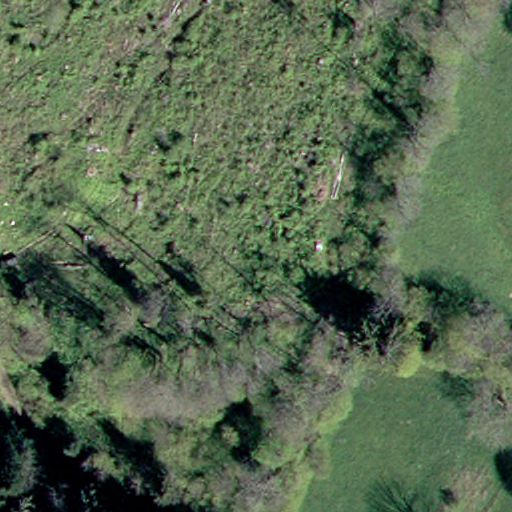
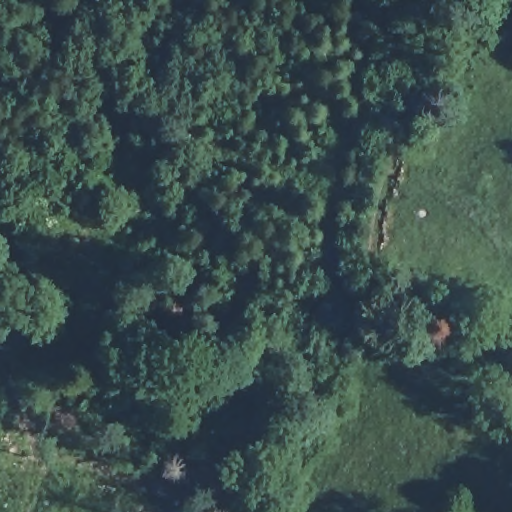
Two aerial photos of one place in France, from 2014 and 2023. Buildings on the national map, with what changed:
[]

